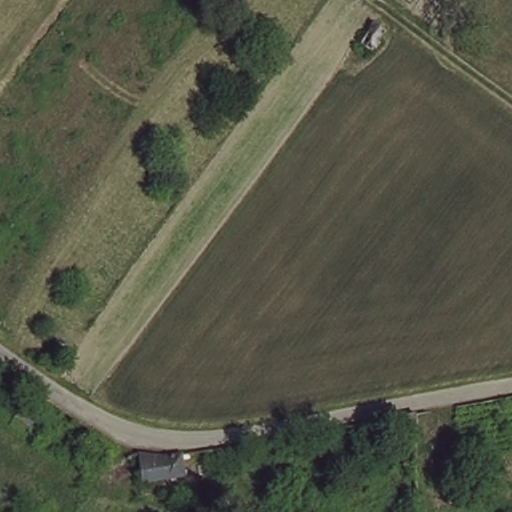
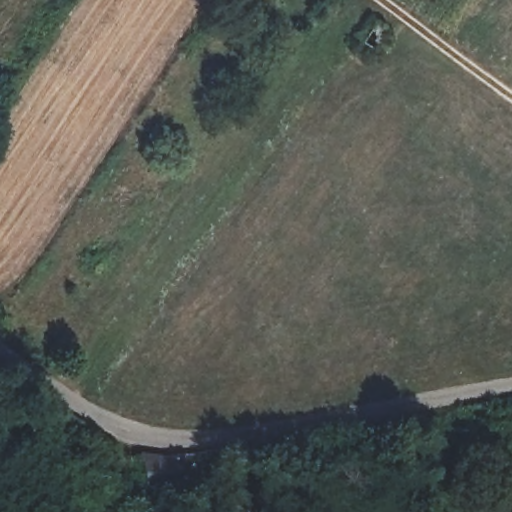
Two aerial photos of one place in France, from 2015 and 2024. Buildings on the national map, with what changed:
unchanged [(356,43),(371,16),(389,26),(372,51),(356,43)]
unchanged [(151,481),(150,454),(174,450),(176,480),(151,481)]

